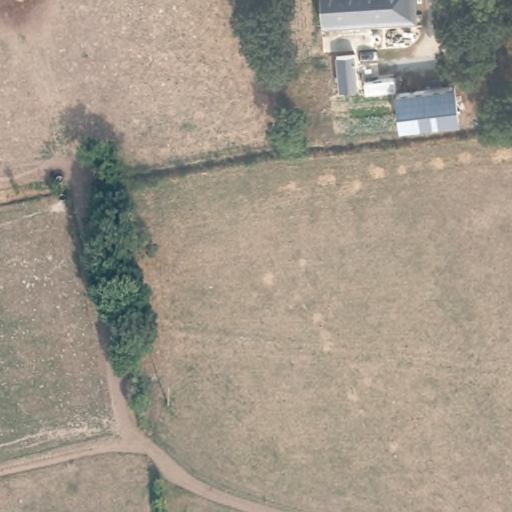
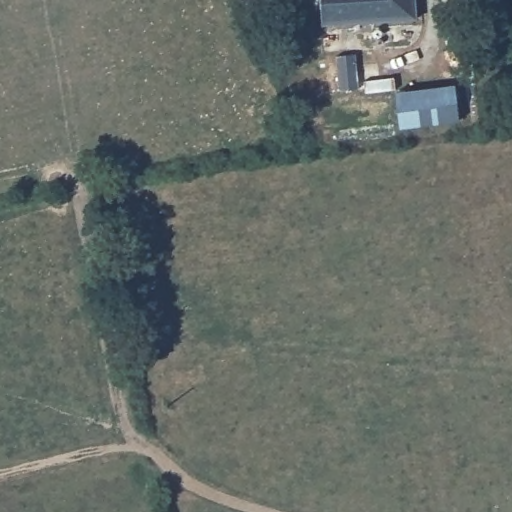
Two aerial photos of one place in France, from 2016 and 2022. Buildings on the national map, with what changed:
unchanged [(416,15),(371,19),(323,20),(322,0),(416,0),(416,15)]
unchanged [(402,89),(455,86),(457,115),(402,119),(398,91),(402,89)]

